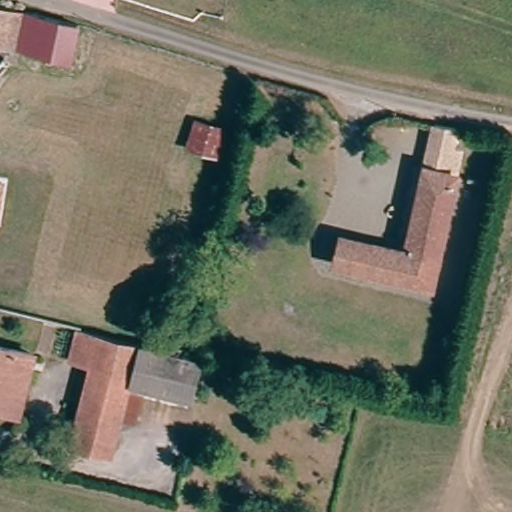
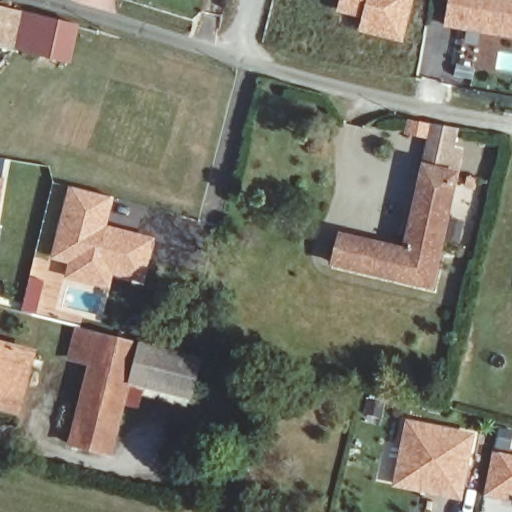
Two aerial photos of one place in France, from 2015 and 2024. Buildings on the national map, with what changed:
new [(351,11),(350,16),(336,13),(340,0),(413,0),(402,42),(358,31),(362,14),(351,11)]
new [(445,26),(450,0),(512,0),(512,39),(445,26)]
unchanged [(0,46),(0,7),(78,26),(69,64),(0,46)]
unchanged [(453,149),(461,151),(431,287),(333,265),(340,235),(385,245),(405,250),(425,168),(434,124),(457,129),(453,149)]
unchanged [(385,245),(387,235),(397,237),(414,165),(425,168),(405,250),(385,245)]
unchanged [(0,210),(0,177),(5,177),(0,210)]
new [(115,197),(109,225),(155,238),(144,283),(114,276),(110,289),(65,280),(69,264),(51,259),(70,188),(115,197)]
unchanged [(111,455),(70,445),(91,364),(71,359),(79,328),(140,343),(129,383),(111,455)]
unchanged [(201,359),(190,399),(129,383),(140,343),(201,359)]
unchanged [(21,399),(0,394),(0,345),(33,353),(21,399)]
unchanged [(19,412),(0,407),(0,394),(21,399),(19,412)]
new [(394,487),(406,421),(475,434),(463,500),(394,487)]
new [(508,494),(507,500),(484,495),(492,451),(512,456),(512,495),(508,494)]

